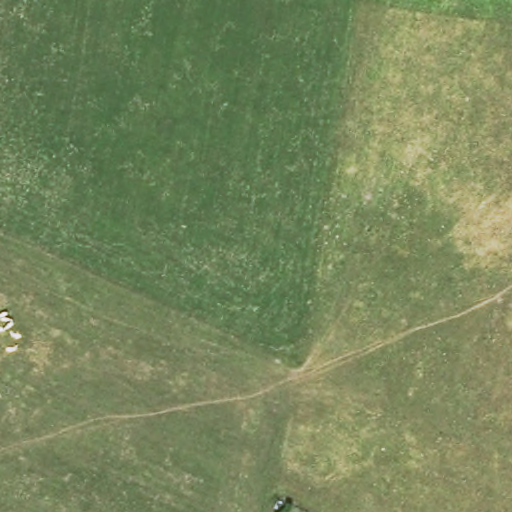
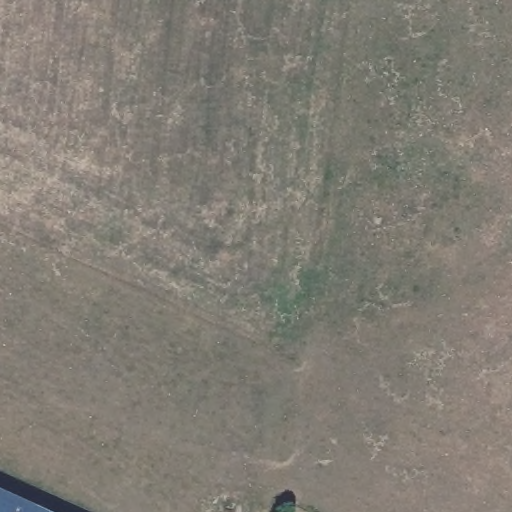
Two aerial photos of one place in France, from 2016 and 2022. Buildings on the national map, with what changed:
new [(0,485),(60,512),(0,512),(0,485)]

